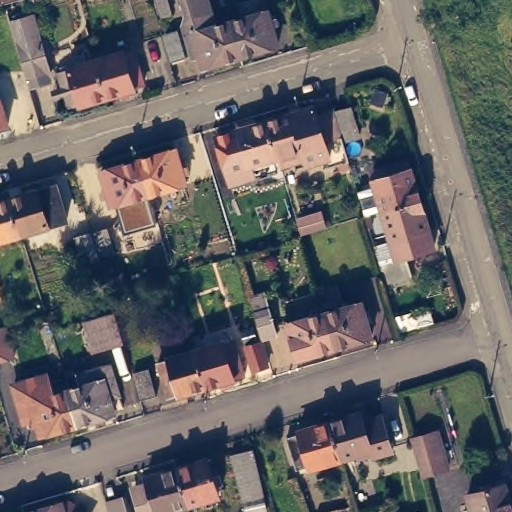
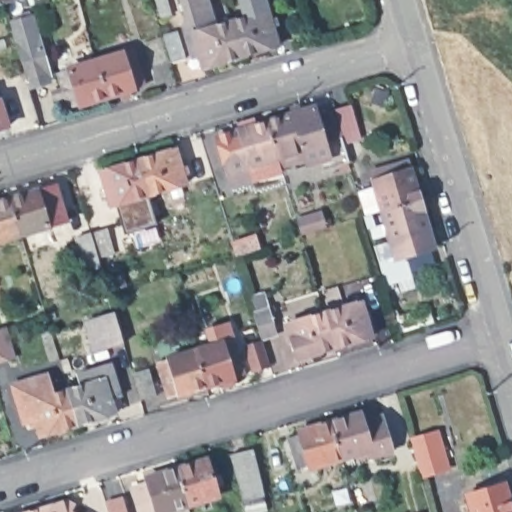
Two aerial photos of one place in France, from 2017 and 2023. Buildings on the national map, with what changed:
unchanged [(20,0),(0,6),(0,0),(20,0)]
unchanged [(35,10),(24,14),(20,0),(45,0),(47,8),(35,10)]
unchanged [(156,0),(168,0),(171,15),(161,18),(156,0)]
unchanged [(211,0),(217,19),(264,5),(279,44),(199,70),(179,0),(211,0)]
unchanged [(9,19),(35,10),(53,78),(31,86),(9,19)]
unchanged [(173,63),(164,36),(176,33),(185,59),(173,63)]
unchanged [(128,49),(138,46),(149,80),(139,84),(111,93),(100,57),(128,49)]
unchanged [(111,93),(84,101),(84,100),(74,103),(63,69),(74,66),(73,65),(100,57),(111,93)]
unchanged [(4,95),(13,123),(0,126),(0,97),(4,95)]
unchanged [(341,137),(331,108),(346,103),(354,133),(341,137)]
unchanged [(344,159),(317,165),(314,157),(302,161),(300,154),(274,162),(272,154),(261,118),(289,109),(289,110),(299,108),(301,115),(329,109),(344,159)]
unchanged [(224,177),(222,166),(213,134),(224,130),(234,127),(234,126),(236,125),(236,119),(246,116),(248,121),(261,118),(272,154),(245,163),(244,161),(234,164),(236,174),(224,177)]
unchanged [(181,145),(191,180),(153,192),(143,155),(181,145)]
unchanged [(153,192),(116,203),(106,168),(143,155),(153,192)]
unchanged [(435,244),(408,251),(413,270),(404,273),(387,278),(374,238),(392,233),(383,203),(365,207),(360,189),(377,184),(374,172),(385,168),(383,160),(394,157),(396,164),(411,160),(420,192),(429,222),(435,244)]
unchanged [(116,203),(153,192),(191,180),(193,185),(148,199),(156,224),(124,234),(118,207),(110,209),(99,169),(106,168),(116,203)]
unchanged [(14,195),(60,182),(71,218),(26,232),(14,195)]
unchanged [(0,239),(0,193),(3,199),(14,195),(26,232),(0,239)]
unchanged [(75,239),(90,234),(106,230),(117,264),(101,269),(85,273),(75,239)]
unchanged [(255,243),(265,240),(267,246),(257,249),(255,243)]
unchanged [(366,298),(377,333),(339,344),(329,309),(366,298)]
unchanged [(339,344),(303,356),(292,320),(329,309),(339,344)]
unchanged [(271,311),(278,335),(261,340),(254,315),(271,311)]
unchanged [(123,345),(93,354),(83,324),(114,314),(123,345)]
unchanged [(15,358),(0,362),(0,329),(6,327),(15,358)]
unchanged [(198,351),(196,340),(208,337),(211,347),(223,344),(223,345),(233,342),(244,375),(233,379),(234,379),(206,388),(196,352),(198,351)]
unchanged [(255,372),(248,348),(261,344),(268,368),(255,372)]
unchanged [(206,388),(179,396),(178,395),(168,398),(158,364),(168,361),(168,359),(196,352),(206,388)]
unchanged [(62,386),(74,383),(71,371),(106,361),(115,391),(105,394),(110,410),(73,422),(62,386)]
unchanged [(133,375),(149,371),(156,397),(141,402),(133,375)]
unchanged [(35,433),(30,417),(19,419),(8,382),(43,372),(49,390),(62,386),(73,422),(35,433)]
unchanged [(361,409),(363,417),(382,411),(393,447),(373,454),(371,446),(341,456),(330,418),(361,409)]
unchanged [(341,456),(311,464),(310,463),(296,466),(287,434),(299,430),(299,428),(330,418),(341,456)]
unchanged [(438,433),(448,469),(423,477),(412,441),(438,433)]
unchanged [(226,454),(251,447),(264,498),(246,503),(226,454)]
unchanged [(186,469),(217,461),(228,497),(198,507),(186,469)]
unchanged [(180,512),(150,512),(143,491),(158,487),(156,479),(186,469),(198,507),(180,512)]
unchanged [(504,480),(512,506),(512,511),(509,512),(473,512),(468,491),(504,480)]
unchanged [(66,499),(69,509),(73,508),(81,512),(29,512),(29,511),(66,499)]
unchanged [(121,499),(125,512),(108,512),(105,504),(121,499)]
unchanged [(29,512),(24,512),(29,511),(29,512)]
unchanged [(512,512),(509,512),(512,511),(512,512)]

